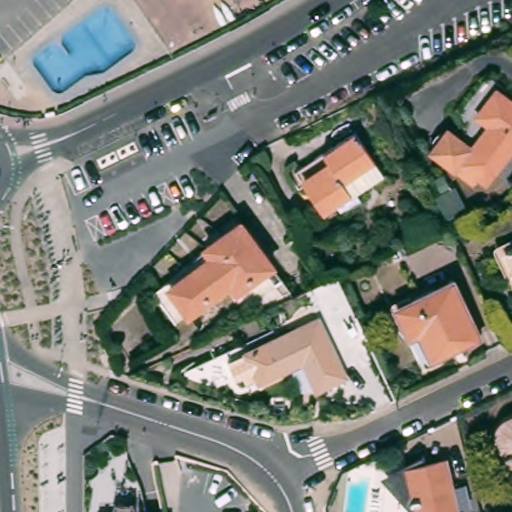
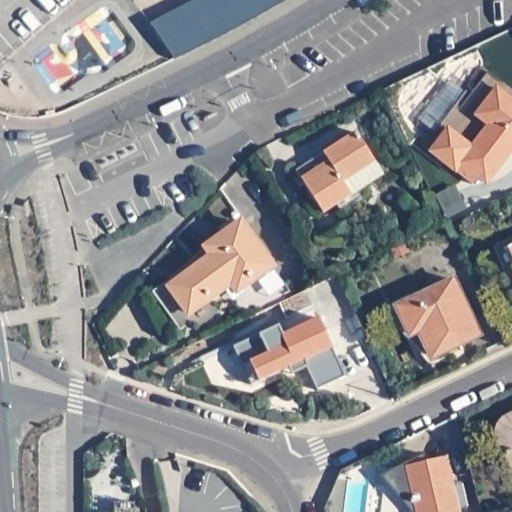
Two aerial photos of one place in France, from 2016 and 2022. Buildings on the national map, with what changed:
new [(198,0),(287,0),(174,60),(150,24),(198,0)]
unchanged [(486,182),(476,175),(470,182),(430,150),(446,128),(470,147),(488,124),(478,116),(496,91),(512,104),(512,148),(486,182)]
unchanged [(360,131),(386,170),(326,210),(300,170),(360,131)]
unchanged [(172,274),(175,279),(219,249),(212,240),(247,216),(287,273),(257,294),(247,280),(244,283),(237,275),(181,314),(160,283),(172,274)]
unchanged [(509,247),(512,246),(512,254),(509,247)]
unchanged [(455,279),(481,336),(460,346),(457,343),(432,357),(419,330),(411,334),(397,306),(455,279)]
unchanged [(357,316),(330,328),(314,295),(341,283),(357,316)]
unchanged [(318,318),(345,376),(316,389),(303,360),(260,380),(257,375),(245,381),(242,374),(235,377),(226,359),(245,351),(318,318)]
unchanged [(510,455),(506,457),(505,453),(510,450),(502,435),(502,432),(503,429),(505,427),(508,425),(512,423),(512,460),(510,455)]
unchanged [(404,490),(399,489),(395,485),(392,481),(392,474),(393,468),(396,466),(400,464),(403,462),(428,457),(448,452),(452,473),(461,512),(421,512),(416,491),(404,490)]

